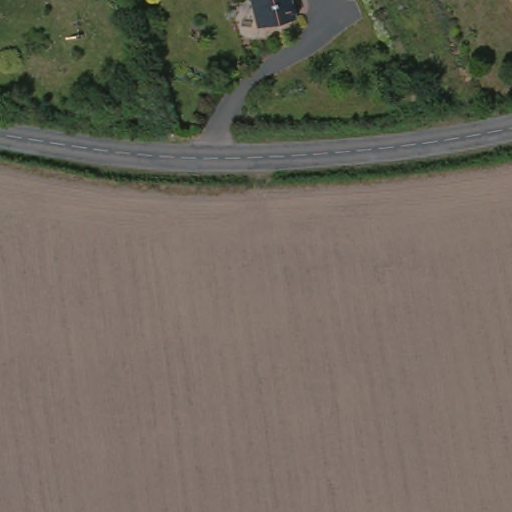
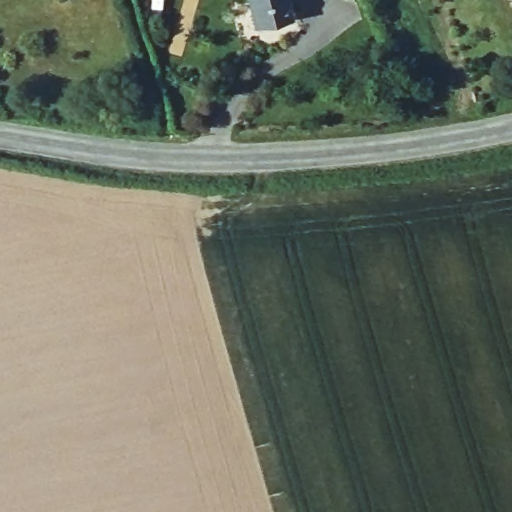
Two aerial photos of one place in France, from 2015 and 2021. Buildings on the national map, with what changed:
unchanged [(259,28),(251,0),(290,0),(296,18),(259,28)]

